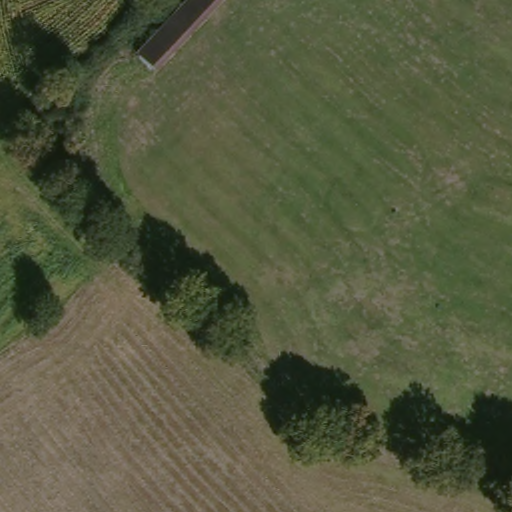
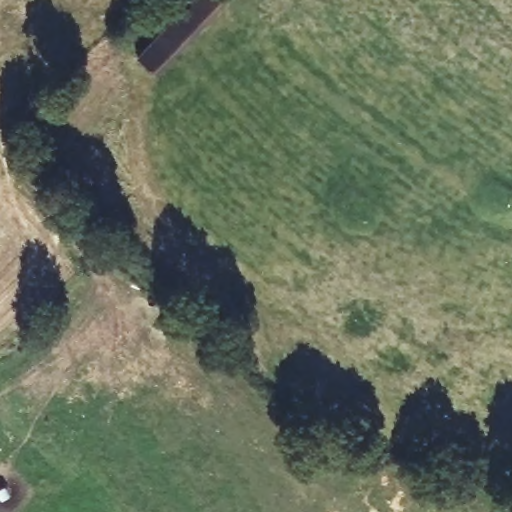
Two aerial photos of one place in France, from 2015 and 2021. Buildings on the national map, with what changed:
unchanged [(224,0),(160,79),(141,59),(189,0),(224,0)]

